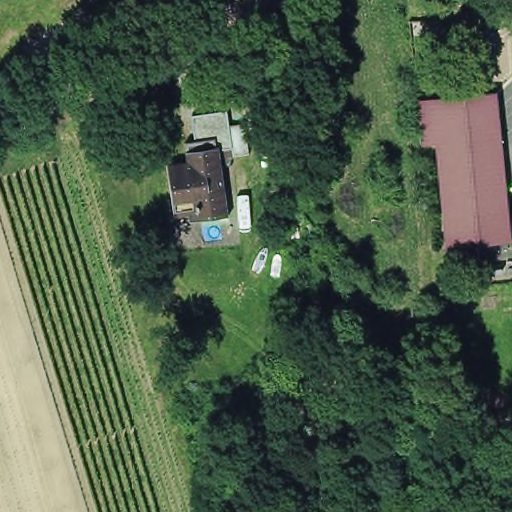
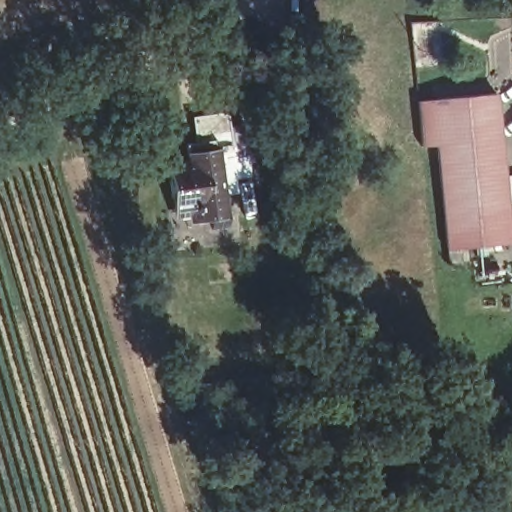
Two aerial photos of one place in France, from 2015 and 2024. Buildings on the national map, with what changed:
unchanged [(479,95),(498,93),(512,243),(489,246),(479,95)]
unchanged [(447,266),(445,251),(437,144),(422,145),(417,102),(479,95),(489,246),(461,249),(463,264),(447,266)]
unchanged [(229,221),(200,226),(198,212),(175,216),(169,173),(192,170),(189,149),(196,148),(193,122),(227,117),(233,153),(219,156),(229,221)]

